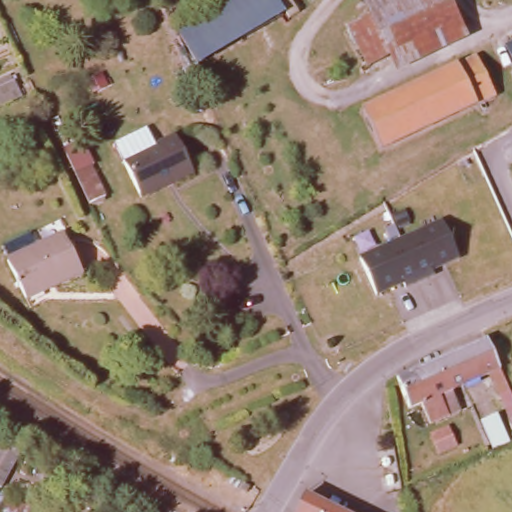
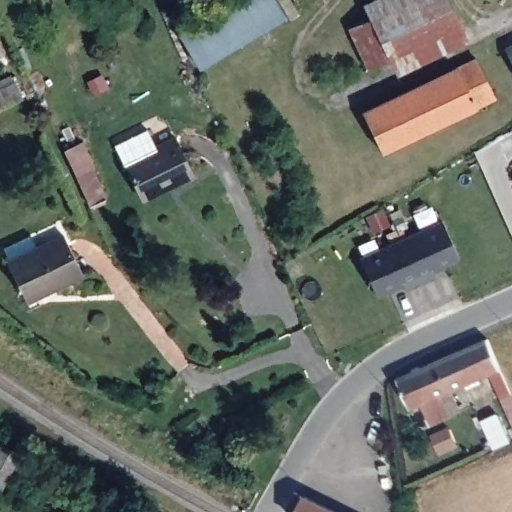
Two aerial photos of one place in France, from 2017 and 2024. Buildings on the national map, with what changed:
unchanged [(201,62),(181,29),(230,0),(280,0),(288,11),(201,62)]
unchanged [(398,71),(392,57),(366,66),(351,28),(372,18),(366,4),(374,0),(447,0),(464,36),(398,71)]
unchanged [(505,48),(512,45),(512,63),(505,48)]
unchanged [(493,96),(381,149),(363,111),(474,56),(493,96)]
unchanged [(198,171),(179,178),(176,176),(143,192),(126,157),(182,135),(198,171)]
unchanged [(93,197),(78,204),(63,174),(78,166),(93,197)]
unchanged [(456,260),(378,295),(364,259),(441,226),(456,260)]
unchanged [(84,269),(26,296),(8,259),(66,233),(84,269)]
unchanged [(497,402),(489,380),(482,384),(479,378),(451,389),(454,398),(440,404),(444,414),(427,420),(419,400),(409,405),(397,377),(486,337),(512,395),(512,396),(512,419),(504,398),(497,402)]
unchanged [(496,413),(479,420),(472,404),(491,398),(496,413)]
unchanged [(0,483),(0,442),(1,440),(20,452),(5,485),(0,483)]
unchanged [(342,512),(303,512),(311,496),(342,512)]

